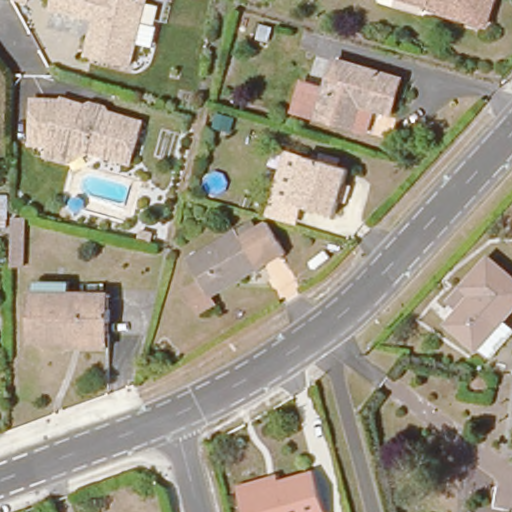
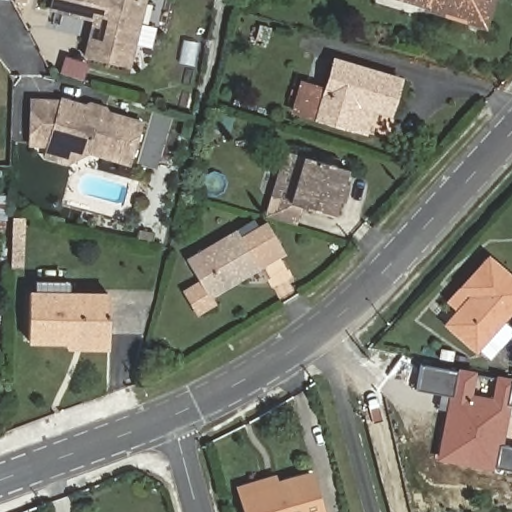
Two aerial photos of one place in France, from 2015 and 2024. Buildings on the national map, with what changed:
unchanged [(149,0),(134,59),(91,49),(100,14),(56,3),(57,0),(149,0)]
unchanged [(438,4),(422,0),(498,0),(491,26),(437,10),(438,4)]
unchanged [(271,29),(267,42),(257,39),(261,26),(271,29)]
unchanged [(362,129),(304,111),(312,83),(336,90),(345,61),(410,80),(400,114),(383,109),(376,133),(362,129)]
unchanged [(60,101),(61,99),(85,105),(88,111),(103,116),(109,113),(144,123),(133,164),(91,151),(86,155),(72,151),(69,144),(59,142),(54,144),(31,144),(32,100),(60,101)]
unchanged [(228,118),(224,131),(210,128),(213,114),(228,118)]
unchanged [(276,184),(285,151),(304,157),(347,169),(333,215),(291,204),(271,198),(276,184)]
unchanged [(7,228),(0,228),(0,197),(8,197),(7,228)]
new [(14,219),(24,219),(23,267),(12,266),(14,219)]
unchanged [(273,228),(290,257),(217,300),(221,308),(202,320),(189,298),(205,288),(193,265),(243,237),(246,243),(273,228)]
new [(469,287),(478,295),(453,324),(482,349),(477,354),(443,325),(455,310),(445,302),(489,254),(494,259),(469,287)]
unchanged [(469,287),(494,259),(512,274),(512,315),(482,349),(453,324),(478,295),(469,287)]
unchanged [(34,347),(34,329),(35,299),(115,299),(115,343),(71,342),(71,348),(34,347)]
new [(446,411),(437,409),(440,394),(415,389),(420,364),(457,371),(457,369),(477,372),(472,394),(491,398),(496,375),(512,378),(512,382),(512,406),(510,406),(502,444),(512,447),(512,471),(494,468),(493,471),(437,461),(446,411)]
unchanged [(311,474),(323,512),(246,512),(241,493),(311,474)]

